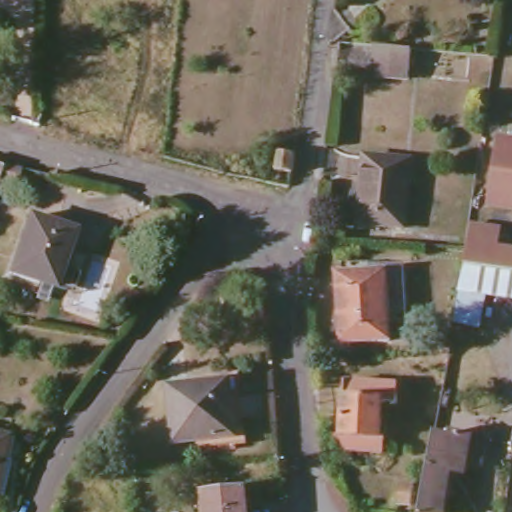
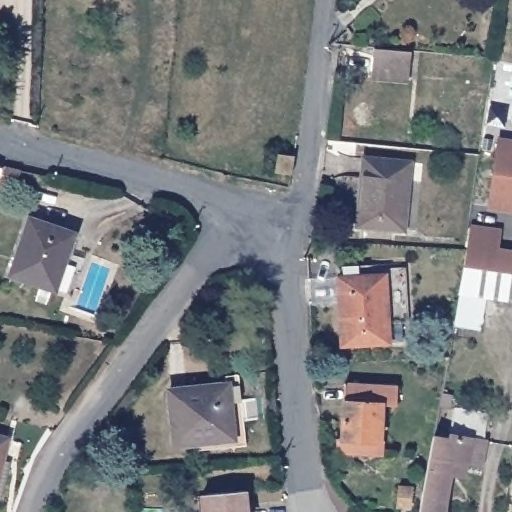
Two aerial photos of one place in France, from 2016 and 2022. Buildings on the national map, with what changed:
unchanged [(413,52),(410,80),(374,78),(375,49),(413,52)]
unchanged [(504,138),(512,139),(512,207),(494,204),(504,138)]
unchanged [(300,156),(297,178),(281,175),(283,154),(300,156)]
unchanged [(398,227),(359,223),(366,158),(412,162),(409,180),(404,228),(398,227)]
unchanged [(0,171),(0,168),(1,168),(0,171)]
unchanged [(0,182),(5,169),(20,171),(19,185),(0,182)]
unchanged [(14,275),(32,218),(77,233),(57,289),(14,275)]
unchanged [(467,263),(470,246),(474,224),(504,228),(500,248),(512,250),(512,270),(467,263)]
unchanged [(456,326),(462,293),(467,263),(512,270),(512,300),(487,297),(482,329),(456,326)]
unchanged [(338,270),(364,269),(364,272),(380,271),(402,269),(405,325),(385,327),(386,346),(341,348),(337,281),(339,281),(338,270)]
unchanged [(237,444),(226,446),(225,435),(168,441),(163,387),(220,381),(220,372),(232,371),(234,396),(238,396),(240,415),(235,416),(237,444)]
unchanged [(397,388),(397,408),(384,407),(382,442),(345,439),(348,384),(397,388)]
unchanged [(486,441),(481,464),(470,463),(467,468),(464,471),(462,472),(459,472),(454,471),(450,499),(446,499),(444,512),(423,512),(437,436),(456,439),(457,435),(486,441)]
unchanged [(0,469),(0,438),(8,439),(0,469)]
unchanged [(417,487),(415,505),(400,504),(402,485),(417,487)]
unchanged [(203,493),(244,490),(245,512),(204,512),(203,493)]

